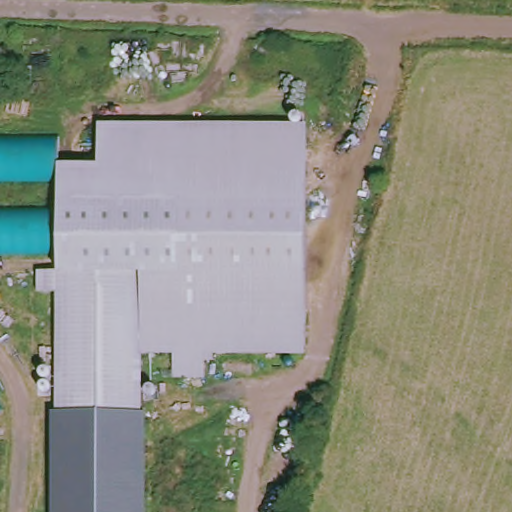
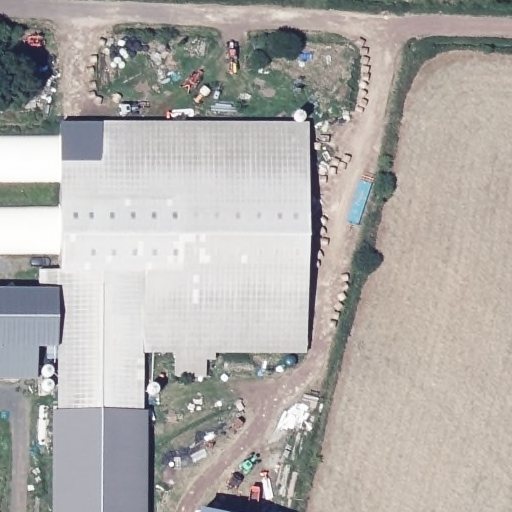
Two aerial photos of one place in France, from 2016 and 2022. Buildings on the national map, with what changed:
unchanged [(57,175),(0,176),(0,135),(58,135),(57,163),(98,163),(98,121),(305,122),(303,353),(213,353),(213,360),(202,360),(202,376),(172,376),(170,352),(140,352),(140,412),(145,412),(144,512),(50,512),(50,410),(54,410),(55,292),(35,291),(37,270),(58,269),(58,248),(0,250),(0,209),(58,208),(57,175)]
new [(59,125),(98,125),(98,163),(57,163),(58,135),(59,125)]
new [(55,349),(37,350),(37,369),(47,368),(55,370),(54,392),(47,395),(42,393),(40,390),(40,387),(37,380),(0,380),(0,291),(35,291),(55,292),(55,349)]

